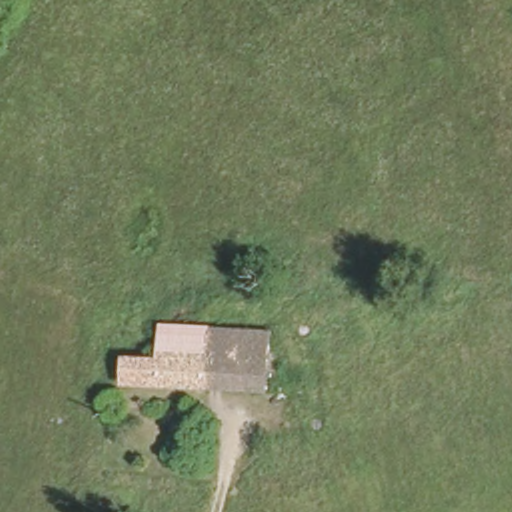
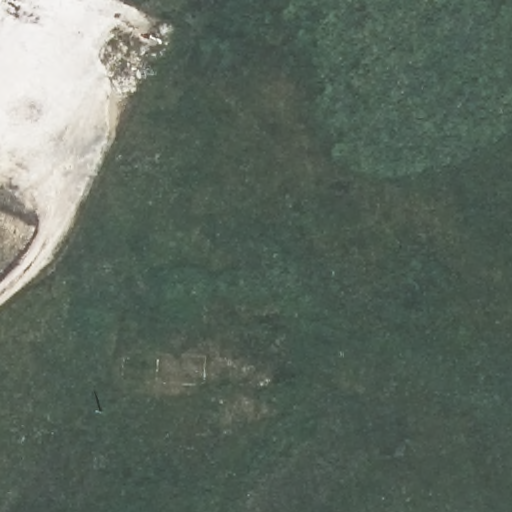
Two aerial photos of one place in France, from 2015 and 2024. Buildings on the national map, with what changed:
demolished [(268,392),(118,382),(119,351),(154,352),(157,320),(269,327),(268,392)]

